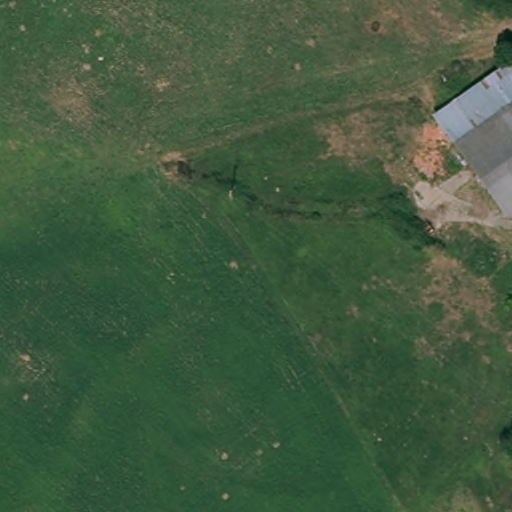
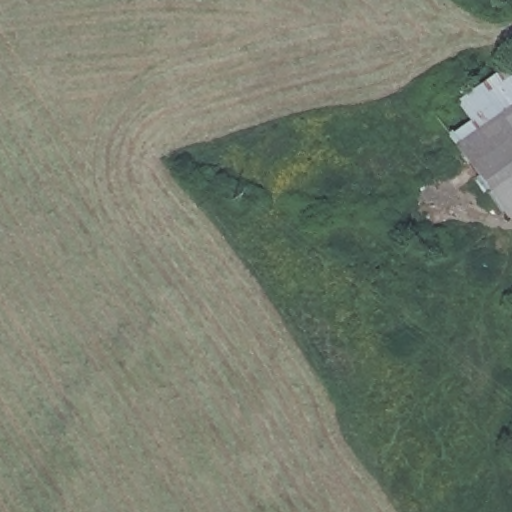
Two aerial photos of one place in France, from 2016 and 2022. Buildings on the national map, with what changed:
unchanged [(436,117),(512,61),(512,217),(508,220),(436,117)]

